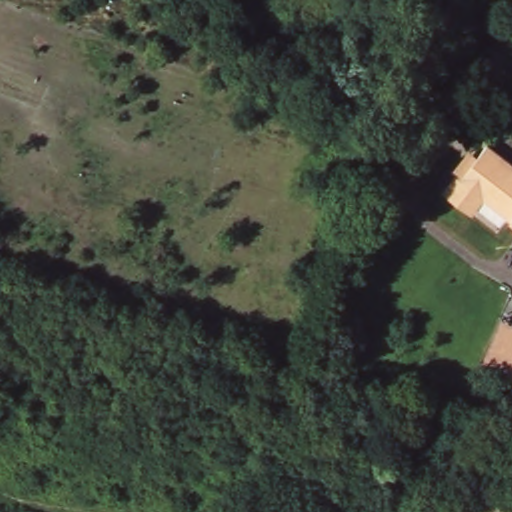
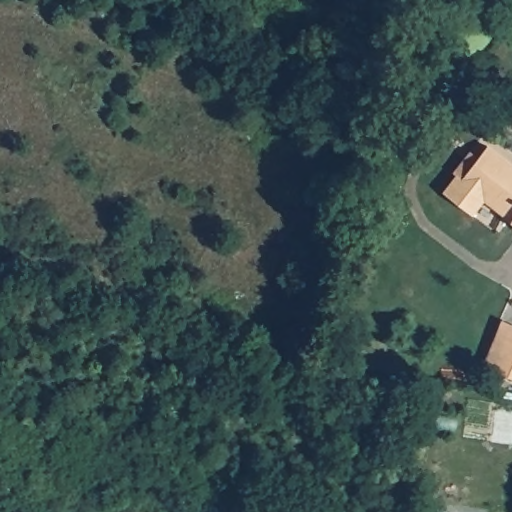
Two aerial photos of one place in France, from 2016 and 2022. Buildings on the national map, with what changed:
unchanged [(512,221),(488,201),(473,218),(443,192),(460,172),(456,169),(472,151),(481,156),(490,145),(512,164),(512,221)]
unchanged [(512,323),(512,378),(488,366),(512,323)]

